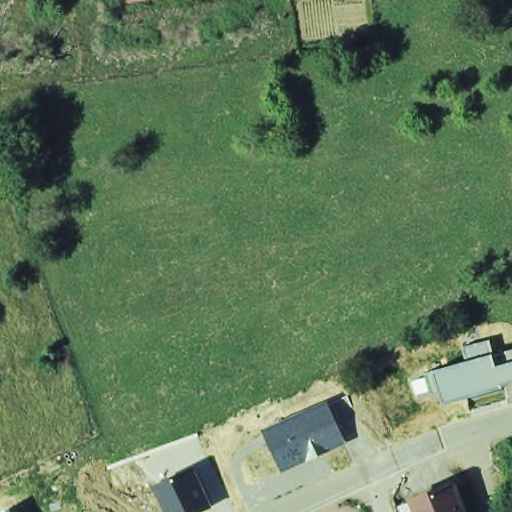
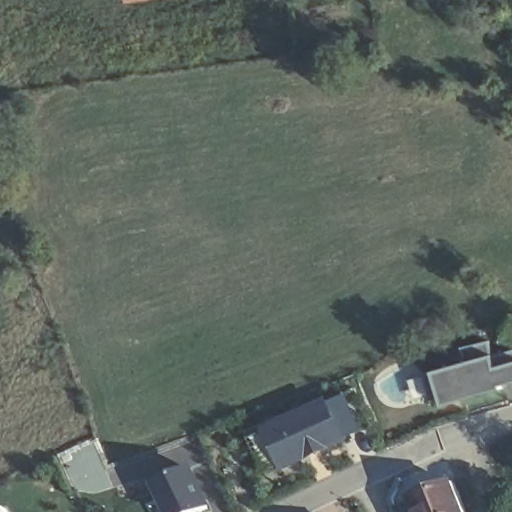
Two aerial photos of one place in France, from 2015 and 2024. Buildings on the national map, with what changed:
unchanged [(501,385),(502,388),(444,403),(440,391),(432,395),(426,374),(437,370),(465,361),(461,346),(489,340),(494,354),(512,350),(512,382),(501,385)]
unchanged [(348,445),(281,472),(262,430),(328,401),(348,445)]
unchanged [(205,512),(163,512),(151,486),(193,467),(213,509),(205,512)]
unchanged [(458,485),(467,512),(418,512),(413,498),(458,485)]
unchanged [(6,510),(7,512),(2,512),(6,510)]

